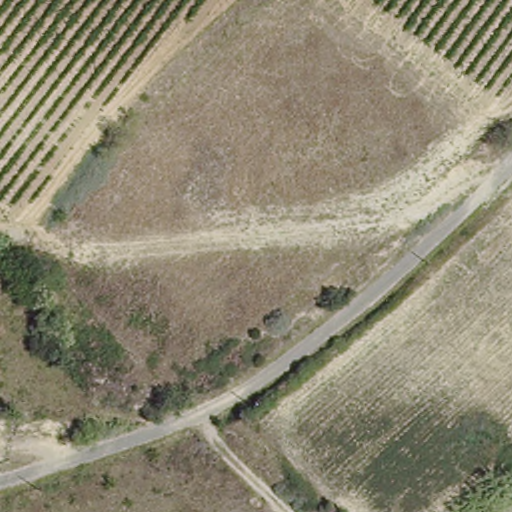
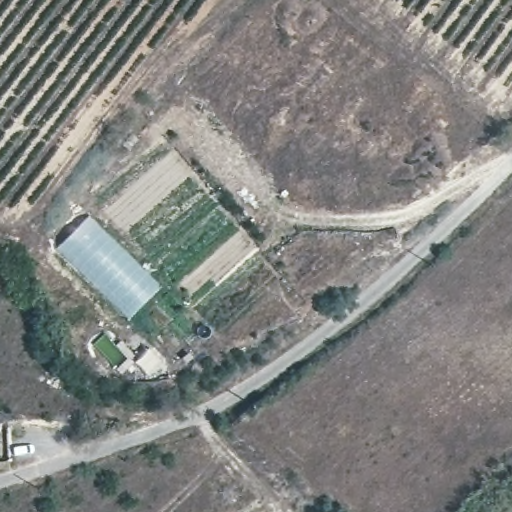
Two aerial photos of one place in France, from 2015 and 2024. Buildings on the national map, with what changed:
new [(133,315),(60,247),(86,219),(159,288),(133,315)]

